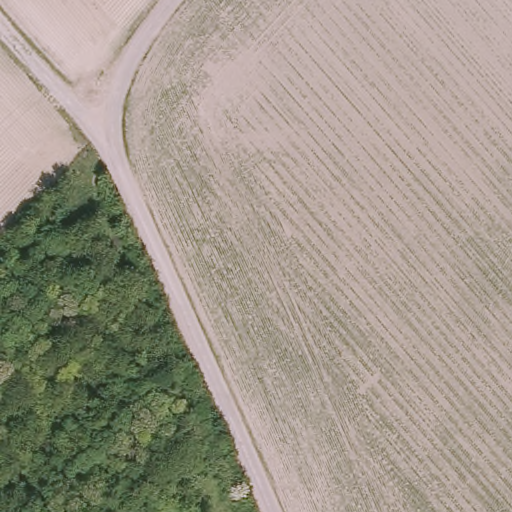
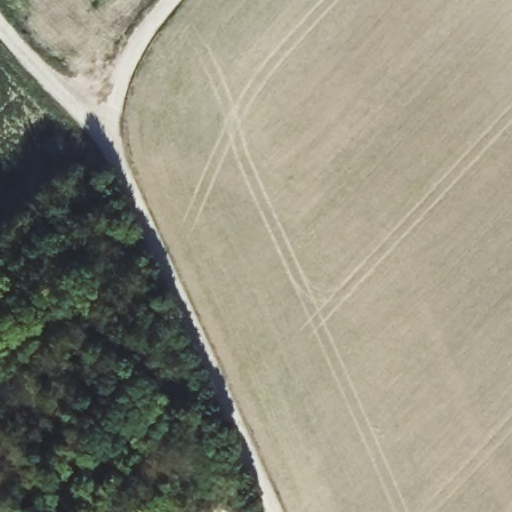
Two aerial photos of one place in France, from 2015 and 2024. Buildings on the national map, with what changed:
[]

